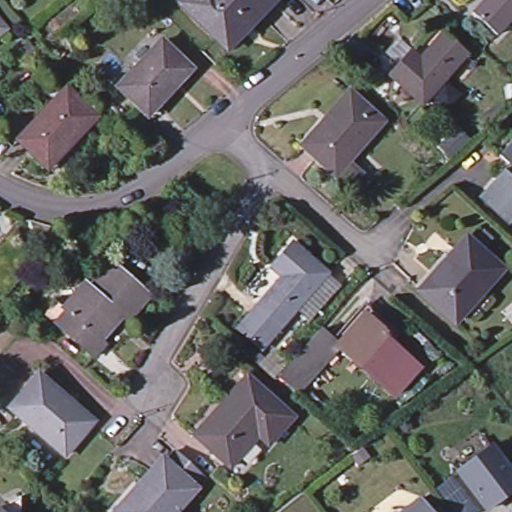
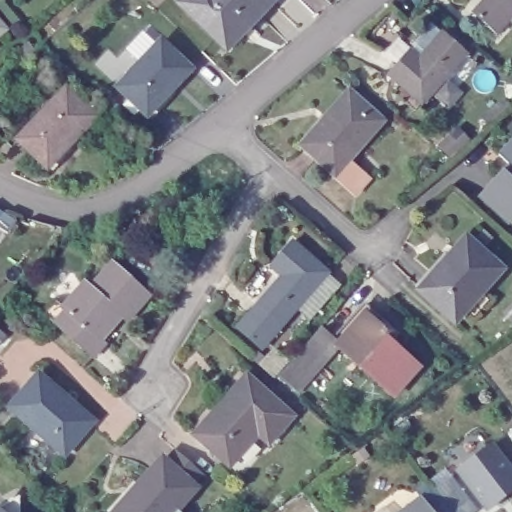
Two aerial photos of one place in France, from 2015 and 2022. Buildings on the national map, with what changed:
unchanged [(178,1),(179,0),(273,0),(227,48),(178,1)]
unchanged [(512,16),(497,32),(474,12),(484,0),(512,0),(512,16)]
unchanged [(5,27),(0,31),(0,22),(5,27)]
unchanged [(422,103),(388,74),(410,50),(418,57),(442,32),(466,54),(422,103)]
unchanged [(190,67),(147,114),(116,86),(160,40),(190,67)]
unchanged [(48,167),(18,139),(66,87),(97,115),(48,167)]
unchanged [(300,145),(322,121),(325,124),(351,94),(381,120),(347,159),(368,177),(355,192),(335,174),(300,145)]
unchanged [(497,158),(512,140),(512,223),(476,192),(497,158)]
unchanged [(501,272),(455,324),(422,295),(452,261),(452,259),(467,242),(501,272)]
unchanged [(324,282),(267,346),(243,324),(277,285),(266,275),(288,250),(324,282)]
unchanged [(150,290),(128,315),(123,311),(102,335),(105,338),(95,351),(56,317),(90,278),(99,287),(106,279),(99,272),(114,257),(150,290)]
unchanged [(381,328),(382,327),(387,332),(382,336),(417,367),(392,395),(336,345),(364,313),(381,328)]
unchanged [(68,400),(67,402),(90,425),(62,454),(10,405),(40,373),(68,400)]
unchanged [(294,417),(269,445),(257,435),(229,466),(194,435),(217,408),(222,413),(251,380),(294,417)]
unchanged [(460,467),(491,442),(512,469),(512,489),(490,506),(460,467)]
unchanged [(115,512),(159,462),(162,466),(172,455),(199,478),(189,490),(192,493),(175,512),(115,512)]
unchanged [(445,501),(435,487),(451,475),(462,488),(445,501)]
unchanged [(0,512),(0,507),(5,503),(19,496),(19,512),(0,512)]
unchanged [(433,512),(398,512),(420,496),(433,512)]

